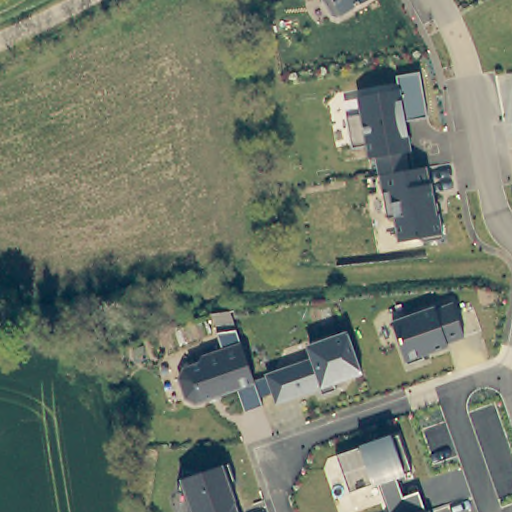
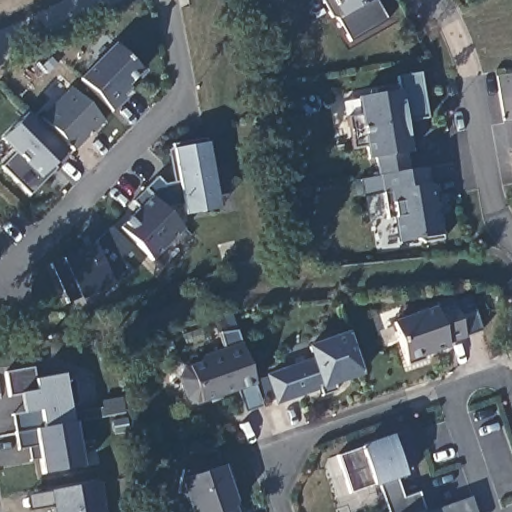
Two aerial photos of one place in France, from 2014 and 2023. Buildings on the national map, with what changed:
unchanged [(321,0),(377,0),(339,22),(333,20),(321,0)]
new [(145,71),(125,93),(129,97),(114,114),(77,82),(114,42),(145,71)]
unchanged [(378,175),(375,158),(369,159),(367,146),(352,149),(347,117),(362,115),(359,97),(399,90),(397,76),(420,72),(428,118),(406,122),(399,132),(409,139),(411,151),(405,152),(408,170),(378,175)]
new [(105,119),(73,150),(40,117),(70,88),(105,119)]
new [(67,152),(40,180),(27,194),(0,166),(13,151),(1,139),(27,113),(67,152)]
new [(218,208),(182,214),(181,205),(167,207),(145,187),(156,177),(163,185),(177,184),(170,149),(206,139),(218,208)]
unchanged [(410,170),(427,167),(430,185),(432,184),(437,215),(440,215),(444,240),(424,243),(418,239),(399,242),(394,217),(388,219),(380,175),(410,170)]
new [(167,207),(166,211),(186,230),(153,261),(137,245),(119,226),(138,207),(131,201),(145,187),(167,207)]
new [(137,245),(118,261),(130,273),(113,285),(81,299),(68,303),(51,264),(62,260),(95,246),(119,226),(137,245)]
unchanged [(417,315),(416,312),(433,306),(435,310),(453,305),(464,336),(446,342),(448,345),(423,354),(424,359),(407,365),(393,323),(417,315)]
unchanged [(244,352),(254,382),(196,403),(186,398),(178,378),(183,367),(198,362),(201,356),(222,349),(216,332),(236,330),(244,352)]
unchanged [(275,405),(265,376),(310,361),(306,346),(348,332),(363,375),(322,390),(275,405)]
new [(32,367),(34,380),(64,375),(64,381),(75,378),(79,404),(68,407),(70,421),(41,428),(14,433),(11,415),(23,411),(20,395),(8,398),(4,373),(32,367)]
new [(43,473),(40,458),(32,460),(29,447),(18,449),(14,433),(34,430),(41,428),(70,421),(75,422),(83,466),(43,473)]
unchanged [(396,480),(402,496),(420,492),(428,511),(425,512),(388,512),(379,486),(348,494),(336,457),(397,436),(411,474),(396,480)]
unchanged [(229,462),(236,483),(229,485),(235,501),(231,510),(232,512),(192,512),(185,493),(177,492),(182,469),(201,472),(229,462)]
new [(102,481),(108,512),(54,512),(53,506),(30,510),(27,495),(102,481)]
unchanged [(428,511),(429,512),(426,512),(428,511)]

